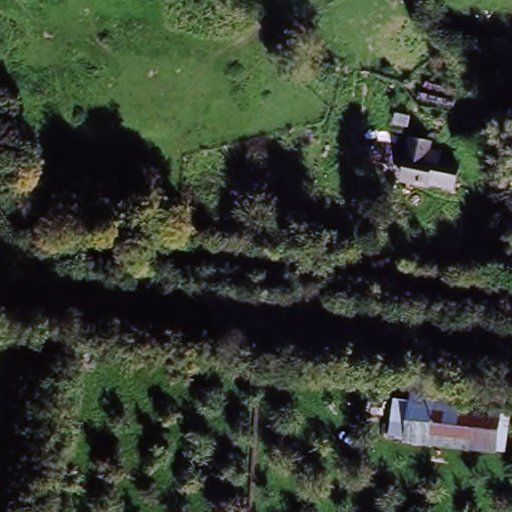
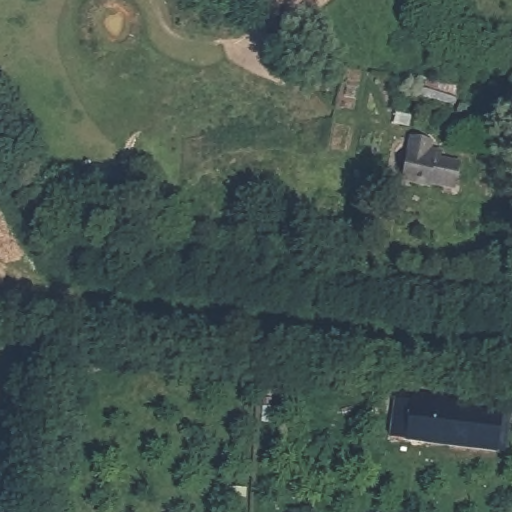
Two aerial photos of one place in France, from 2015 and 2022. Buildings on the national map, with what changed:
unchanged [(449,130),(442,160),(410,154),(415,124),(449,130)]
unchanged [(502,406),(498,445),(410,436),(414,398),(502,406)]

